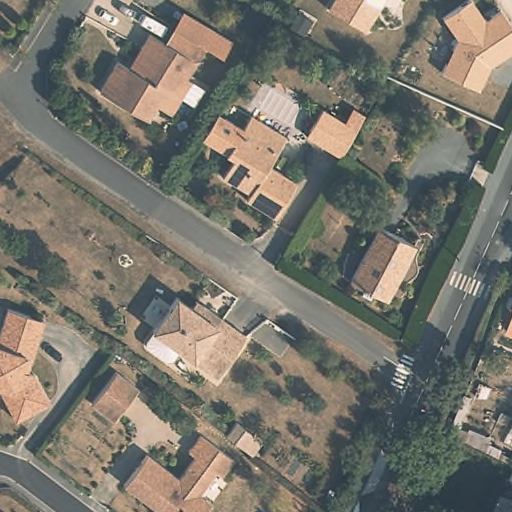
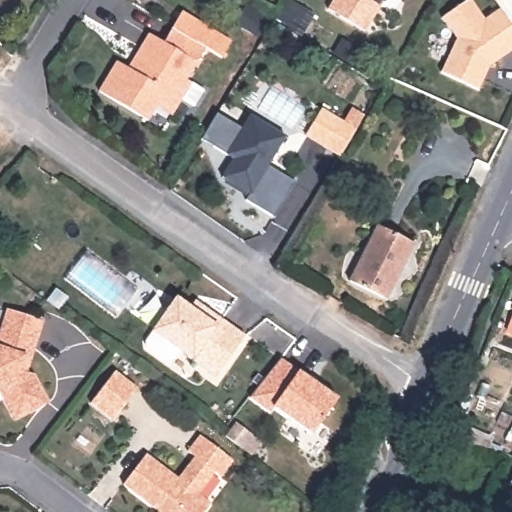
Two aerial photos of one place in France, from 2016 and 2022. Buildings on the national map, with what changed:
unchanged [(365,32),(328,10),(334,0),(384,0),(365,32)]
unchanged [(490,66),(479,90),(440,73),(455,40),(441,18),(467,0),(471,0),(485,19),(500,9),(512,27),(512,52),(490,66)]
unchanged [(268,20),(258,36),(236,22),(246,6),(268,20)]
unchanged [(183,11),(232,41),(223,58),(206,48),(173,28),(183,11)]
unchanged [(172,115),(157,106),(148,120),(99,91),(117,61),(129,69),(141,49),(150,34),(164,42),(173,28),(206,48),(187,80),(192,82),(172,115)]
unchanged [(310,130),(322,110),(356,130),(340,157),(323,146),(306,136),(310,130)]
unchanged [(222,178),(233,160),(202,140),(217,114),(243,130),(251,116),(286,137),(269,166),(297,183),(276,218),(246,201),(250,195),(242,190),(222,178)]
unchanged [(350,282),(378,226),(414,245),(386,300),(350,282)]
unchanged [(167,361),(148,348),(147,342),(154,332),(153,331),(177,297),(191,307),(196,301),(204,307),(246,337),(218,377),(180,350),(173,360),(167,361)]
unchanged [(44,321),(31,359),(26,373),(35,376),(49,403),(15,420),(4,398),(0,392),(0,332),(8,309),(44,321)]
unchanged [(508,330),(512,321),(512,332),(508,330)]
new [(281,358),(300,371),(340,398),(312,435),(273,406),(270,413),(249,398),(281,358)]
unchanged [(91,403),(116,371),(138,389),(114,420),(91,403)]
unchanged [(237,423),(252,435),(242,448),(227,436),(237,423)]
unchanged [(146,455),(179,479),(196,457),(189,452),(201,435),(234,461),(222,477),(216,472),(199,495),(212,504),(205,512),(160,512),(124,485),(146,455)]

